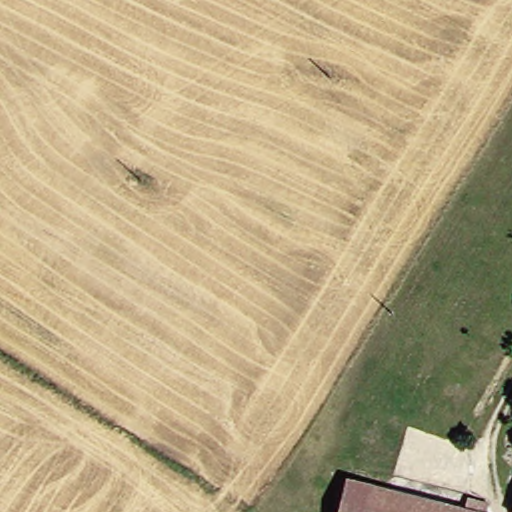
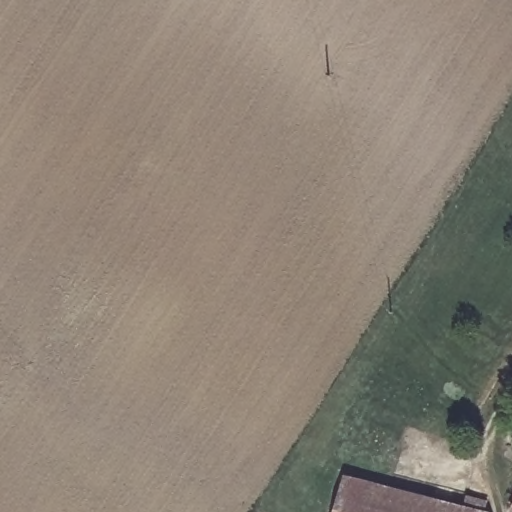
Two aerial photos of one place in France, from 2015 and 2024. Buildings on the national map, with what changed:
unchanged [(355,512),(328,512),(343,470),(361,478),(364,482),(355,512)]
unchanged [(364,482),(420,504),(452,507),(461,512),(355,512),(364,482)]
unchanged [(512,503),(512,510),(509,508),(512,503)]
unchanged [(509,508),(512,510),(512,512),(506,512),(509,508)]

